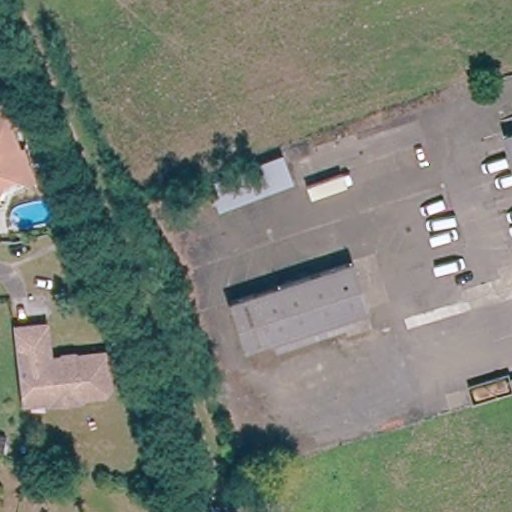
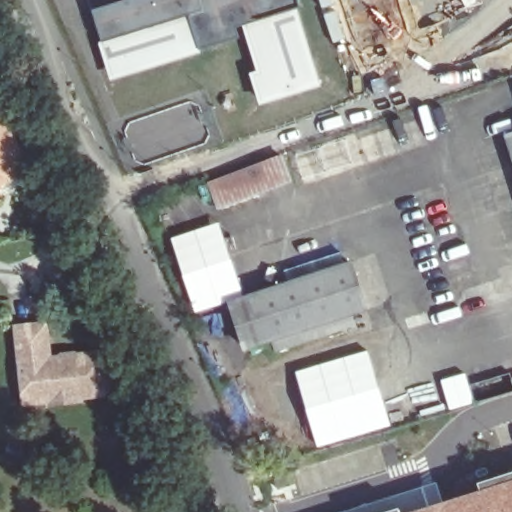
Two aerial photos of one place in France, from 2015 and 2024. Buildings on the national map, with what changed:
new [(321,86),(260,105),(250,74),(256,71),(242,24),(235,27),(239,36),(199,49),(201,53),(111,80),(93,12),(125,0),(124,0),(298,0),(321,86)]
unchanged [(35,179),(0,193),(0,104),(19,151),(23,149),(35,179)]
unchanged [(296,182),(221,210),(209,184),(286,152),(296,182)]
new [(232,299),(195,311),(171,238),(219,222),(242,296),(232,299)]
unchanged [(350,261),(365,310),(353,314),(356,324),(277,350),(272,338),(247,346),(232,299),(350,261)]
unchanged [(18,330),(33,329),(48,327),(49,348),(50,358),(105,354),(108,388),(101,396),(50,401),(24,403),(23,392),(18,330)]
new [(368,348),(392,426),(316,448),(293,370),(368,348)]
new [(465,371),(475,403),(448,411),(439,378),(465,371)]
new [(433,380),(440,402),(420,409),(418,405),(412,406),(406,388),(433,380)]
new [(512,480),(512,512),(341,512),(436,481),(442,501),(512,480)]

